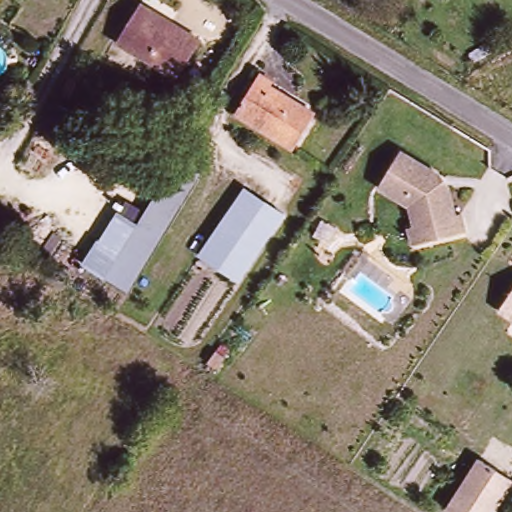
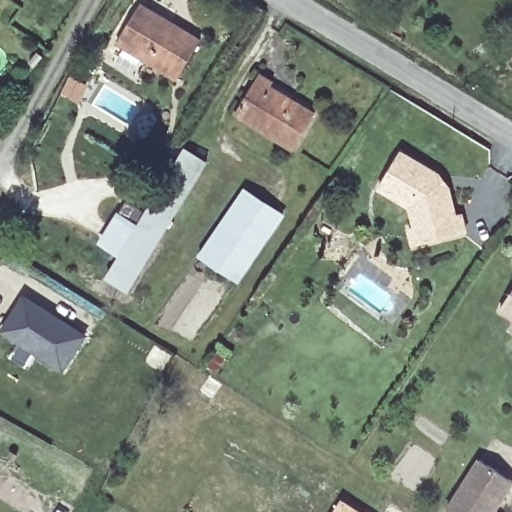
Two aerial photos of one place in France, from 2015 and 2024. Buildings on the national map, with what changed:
unchanged [(119,45),(142,10),(202,49),(179,84),(119,45)]
unchanged [(323,122),(303,154),(242,116),(266,76),(284,86),(279,95),(323,122)]
unchanged [(116,211),(136,224),(183,148),(208,161),(127,293),(82,265),(116,211)]
unchanged [(413,226),(420,224),(413,202),(382,184),(403,149),(429,165),(441,171),(451,181),(459,211),(465,210),(470,227),(429,239),(418,242),(413,226)]
unchanged [(244,186),(282,215),(237,282),(196,255),(244,186)]
unchanged [(512,281),(512,316),(496,305),(512,281)]
new [(58,317),(63,321),(85,335),(63,370),(3,331),(25,296),(58,317)]
unchanged [(512,482),(512,485),(495,512),(448,512),(445,510),(477,460),(512,482)]
new [(334,512),(343,498),(363,512),(334,512)]

